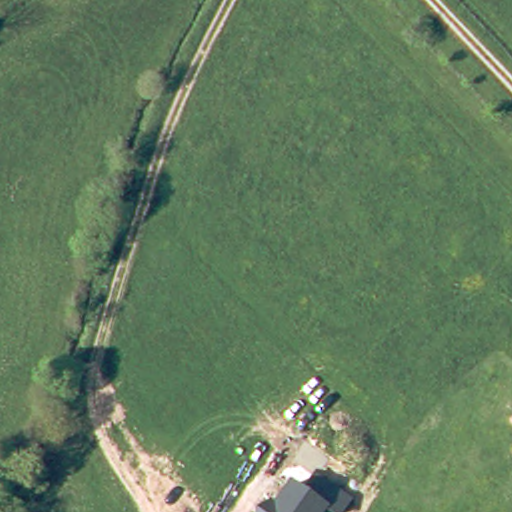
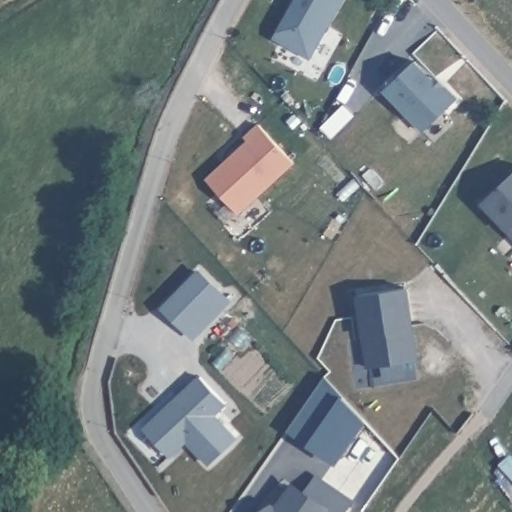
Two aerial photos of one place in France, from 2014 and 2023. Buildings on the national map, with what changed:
new [(310,60),(272,39),(293,0),(343,0),(310,60)]
new [(433,77),(435,75),(457,98),(422,133),(383,90),(417,58),(433,77)]
new [(295,164),(240,214),(205,178),(247,140),(244,137),(258,124),(295,164)]
new [(479,203),(512,174),(512,238),(507,232),(479,203)]
new [(191,336),(185,329),(164,309),(199,272),(220,292),(226,298),(191,336)]
new [(406,288),(415,362),(368,369),(359,295),(406,288)]
new [(170,457),(141,428),(199,375),(227,404),(215,415),(238,438),(208,465),(187,443),(170,457)]
new [(325,377),(342,393),(366,422),(336,464),(307,445),(287,431),(325,377)]
unchanged [(344,512),(329,512),(327,511),(327,512),(256,512),(257,509),(270,501),(275,504),(291,480),(307,492),(315,475),(354,500),(344,512)]

